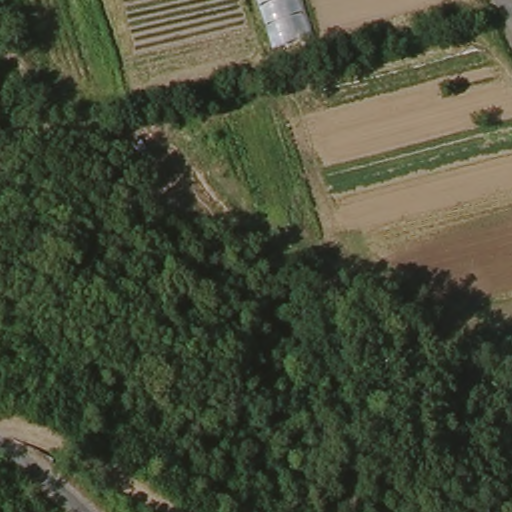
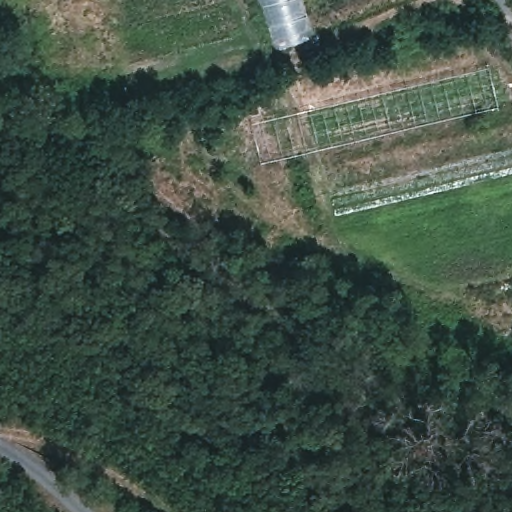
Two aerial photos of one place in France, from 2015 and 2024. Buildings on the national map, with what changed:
unchanged [(262,0),(299,0),(311,38),(278,49),(262,0)]

